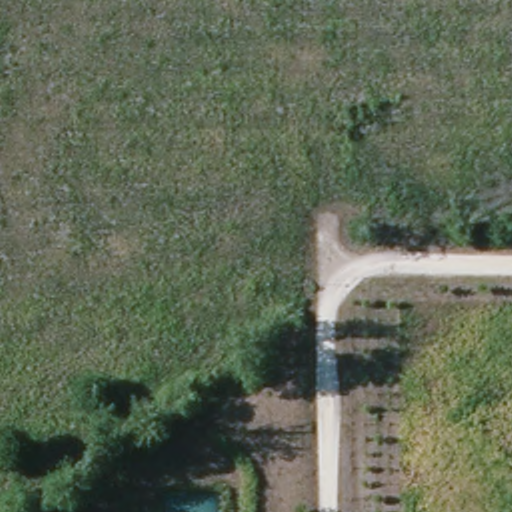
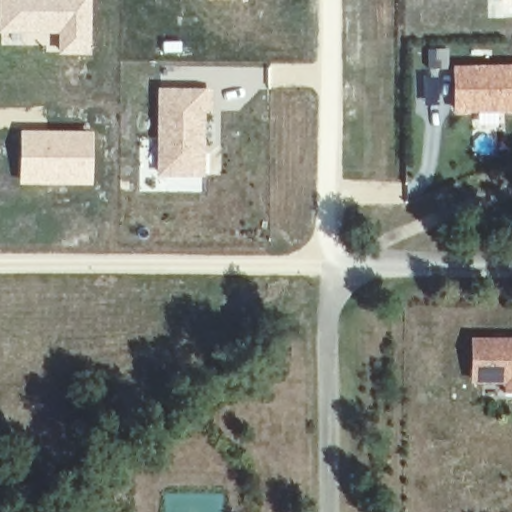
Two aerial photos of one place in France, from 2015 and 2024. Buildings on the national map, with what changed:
new [(62,52),(62,30),(2,30),(2,0),(89,0),(89,52),(62,52)]
new [(512,0),(512,6),(501,6),(500,0),(512,0)]
new [(452,66),(512,66),(512,114),(453,114),(452,66)]
new [(210,94),(210,110),(202,110),(202,175),(162,175),(162,93),(210,94)]
new [(20,129),(94,131),(93,186),(19,184),(20,129)]
new [(505,385),(470,384),(471,338),(512,338),(512,393),(505,393),(505,385)]

